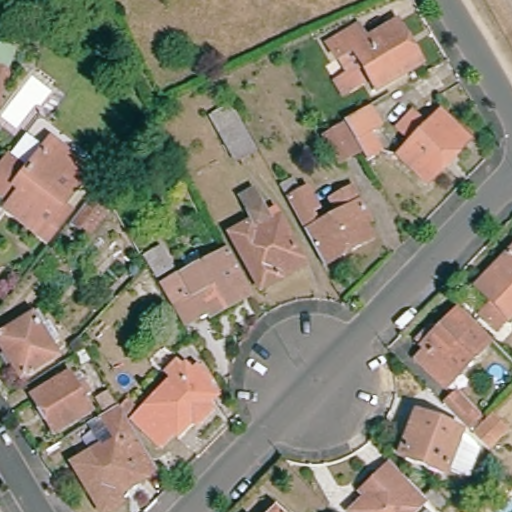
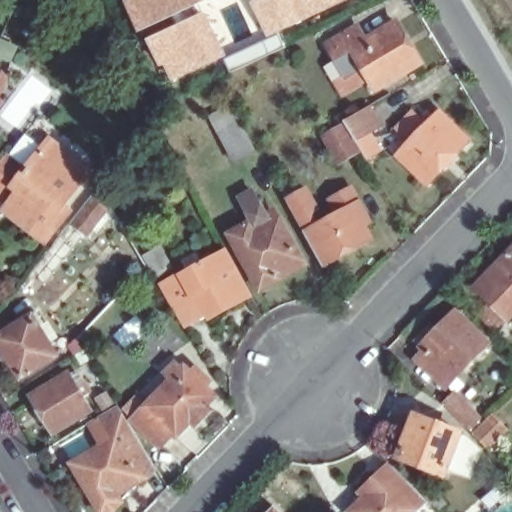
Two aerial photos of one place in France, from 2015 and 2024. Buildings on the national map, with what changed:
new [(138,33),(122,0),(210,0),(138,33)]
new [(250,2),(254,0),(347,0),(278,32),(284,46),(230,71),(223,58),(266,37),(250,2)]
new [(205,11),(227,56),(170,83),(146,40),(205,11)]
unchanged [(366,35),(403,19),(427,67),(376,101),(373,88),(344,100),(332,82),(346,73),(339,62),(333,65),(324,42),(357,24),(366,35)]
unchanged [(13,75),(0,108),(0,69),(13,75)]
unchanged [(372,105),(384,125),(373,133),(377,140),(366,147),(348,119),(372,105)]
unchanged [(238,116),(252,144),(234,154),(218,126),(238,116)]
unchanged [(429,129),(441,118),(469,145),(428,188),(399,160),(411,147),(399,136),(417,117),(429,129)]
unchanged [(346,123),(362,150),(345,161),(329,134),(346,123)]
unchanged [(7,157),(27,171),(49,144),(88,174),(61,207),(67,212),(45,239),(7,209),(0,218),(0,166),(7,157)]
unchanged [(283,189),(295,183),(301,195),(308,192),(319,212),(311,216),(319,229),(340,217),(333,204),(358,190),(376,222),(366,227),(374,243),(325,269),(283,189)]
unchanged [(265,211),(274,204),(309,269),(260,297),(226,236),(247,222),(238,195),(253,187),(265,211)]
unchanged [(92,203),(107,214),(87,240),(73,228),(92,203)]
unchanged [(253,299),(184,332),(143,255),(162,248),(173,276),(226,249),(253,299)]
unchanged [(490,305),(485,300),(493,292),(481,279),(512,248),(512,311),(493,331),(479,316),(490,305)]
unchanged [(433,328),(438,332),(458,312),(489,342),(446,387),(418,359),(426,350),(423,347),(426,344),(421,340),(433,328)]
unchanged [(33,315),(60,358),(23,379),(0,343),(0,334),(33,315)]
unchanged [(180,366),(187,372),(192,367),(207,381),(202,386),(211,394),(201,405),(206,409),(192,423),(187,420),(172,435),(168,432),(155,445),(128,419),(180,366)]
unchanged [(67,373),(76,385),(83,382),(89,391),(81,396),(89,408),(52,430),(30,394),(67,373)]
unchanged [(458,398),(481,422),(470,433),(447,409),(458,398)]
unchanged [(100,511),(73,464),(102,446),(86,421),(97,414),(116,404),(153,466),(113,503),(100,511)]
unchanged [(470,481),(447,472),(445,478),(402,461),(417,419),(460,437),(455,451),(478,460),(470,481)]
unchanged [(492,421),(505,435),(487,453),(473,439),(492,421)]
unchanged [(359,512),(373,498),(368,493),(394,468),(414,489),(428,503),(419,512),(359,512)]
unchanged [(277,512),(274,512),(276,510),(277,512)]

